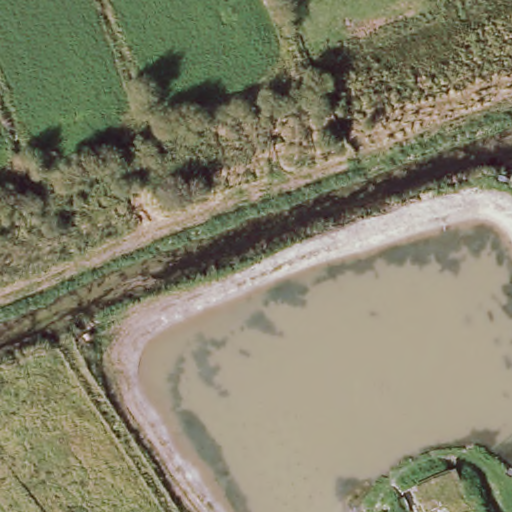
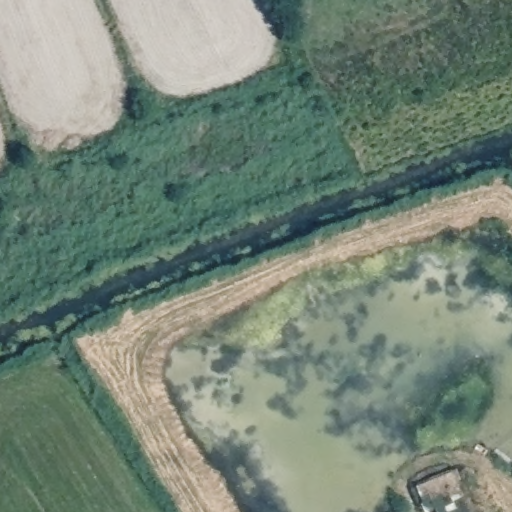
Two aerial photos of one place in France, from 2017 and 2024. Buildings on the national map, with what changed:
unchanged [(432,475),(435,480),(451,474),(465,503),(447,510),(440,494),(423,506),(411,491),(432,475)]

